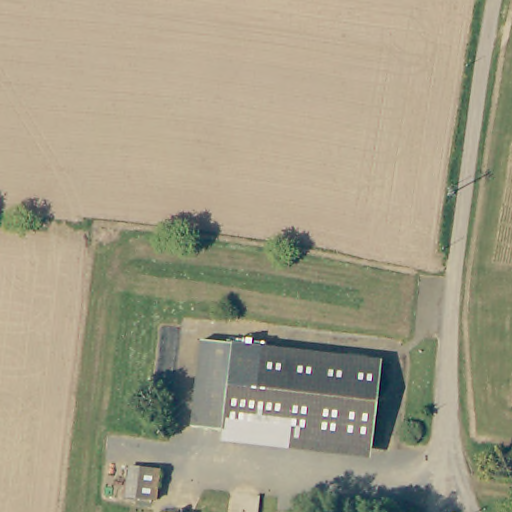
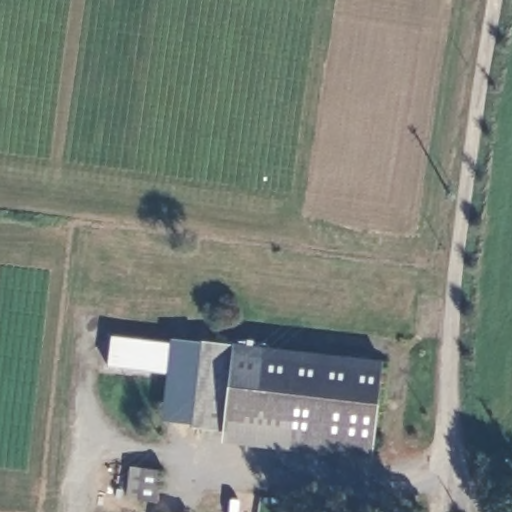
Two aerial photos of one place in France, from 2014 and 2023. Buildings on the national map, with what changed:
new [(202,340),(192,427),(160,424),(165,377),(108,370),(113,330),(202,340)]
unchanged [(372,447),(192,427),(202,340),(381,360),(372,447)]
unchanged [(160,471),(156,501),(136,498),(140,468),(160,471)]

